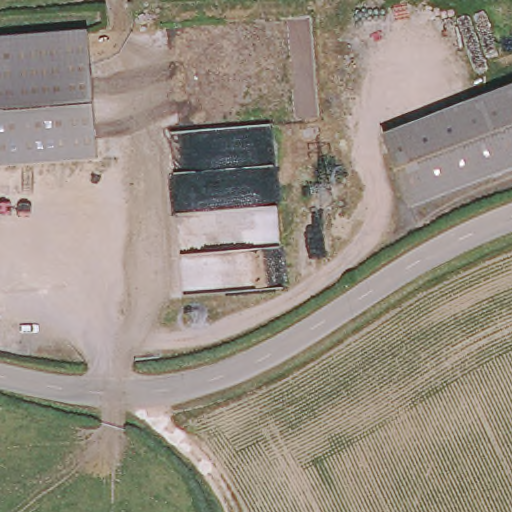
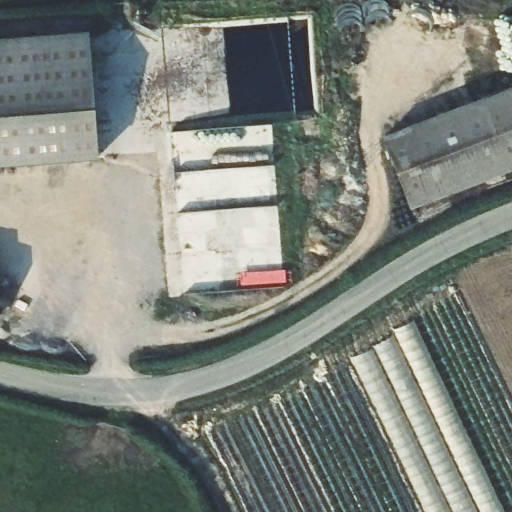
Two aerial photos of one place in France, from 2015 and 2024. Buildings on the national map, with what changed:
unchanged [(100,153),(0,162),(0,39),(87,30),(100,153)]
unchanged [(512,87),(512,114),(504,90),(512,87)]
unchanged [(410,202),(387,132),(504,90),(512,114),(512,166),(410,202)]
new [(396,337),(392,329),(414,320),(505,512),(425,512),(350,357),(396,337)]

